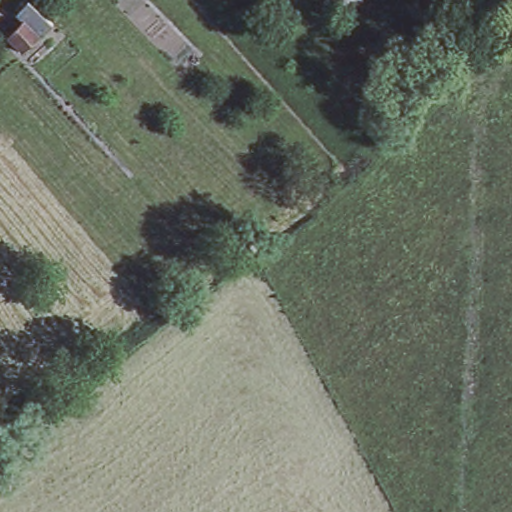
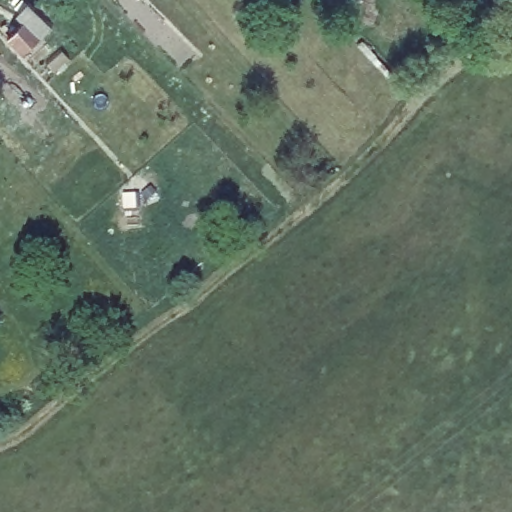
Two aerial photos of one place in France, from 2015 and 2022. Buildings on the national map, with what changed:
unchanged [(331,3),(329,0),(335,0),(331,3)]
unchanged [(18,11),(28,1),(52,23),(22,51),(8,36),(24,19),(18,11)]

